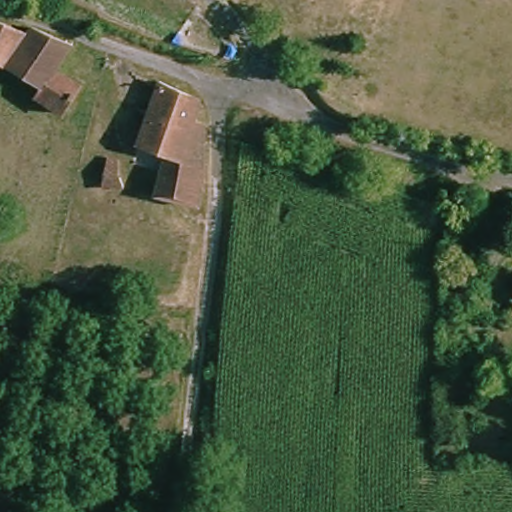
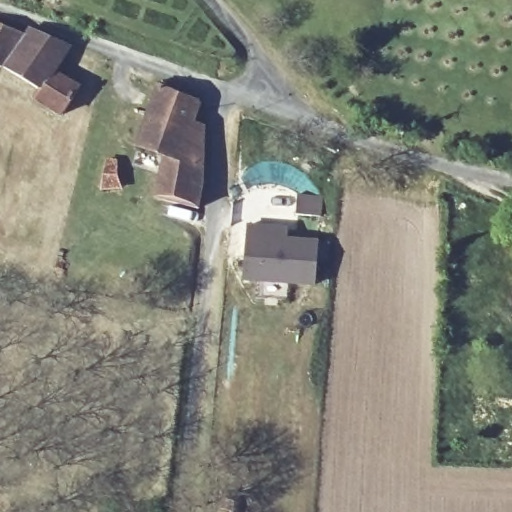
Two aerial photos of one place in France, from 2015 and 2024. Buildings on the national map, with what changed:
unchanged [(29,35),(11,63),(0,59),(0,22),(29,35)]
unchanged [(72,42),(59,70),(81,81),(66,109),(41,95),(47,86),(11,63),(29,35),(35,27),(72,42)]
unchanged [(142,149),(147,133),(156,84),(206,102),(201,125),(211,136),(202,212),(165,203),(170,156),(142,149)]
unchanged [(104,153),(120,155),(117,188),(103,185),(104,153)]
new [(248,225),(288,226),(288,238),(318,239),(315,286),(245,282),(247,239),(248,225)]
unchanged [(512,317),(512,329),(510,328),(512,317)]

